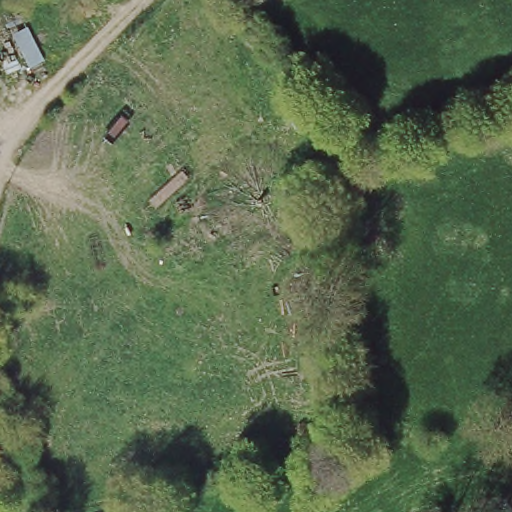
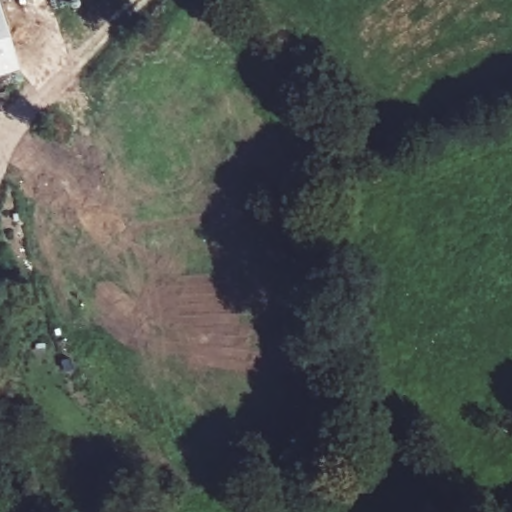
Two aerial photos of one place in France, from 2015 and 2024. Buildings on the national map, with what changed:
new [(0,73),(0,3),(20,67),(0,73)]

